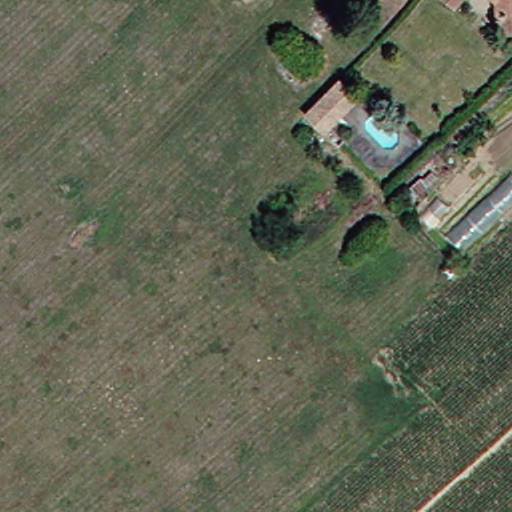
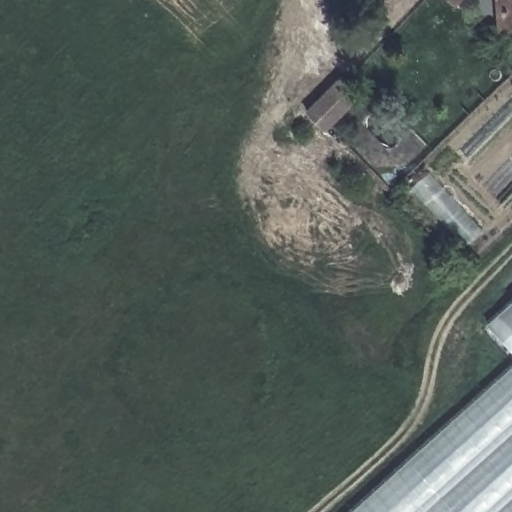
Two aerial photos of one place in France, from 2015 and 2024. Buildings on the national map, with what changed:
unchanged [(486,0),(512,0),(512,11),(487,12),(486,0)]
unchanged [(361,98),(327,135),(304,112),(340,75),(361,98)]
new [(512,307),(512,352),(490,327),(512,307)]
new [(512,371),(512,512),(355,512),(512,371)]

